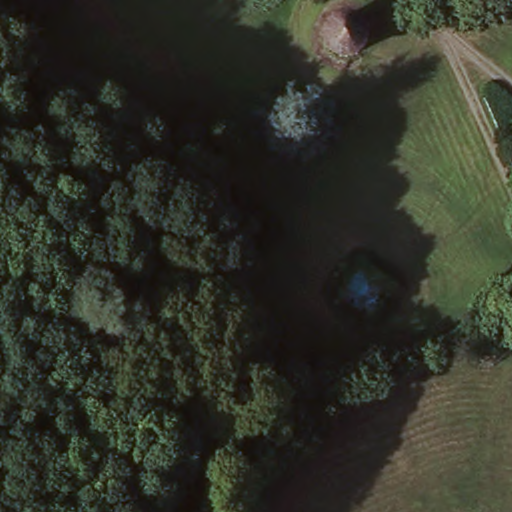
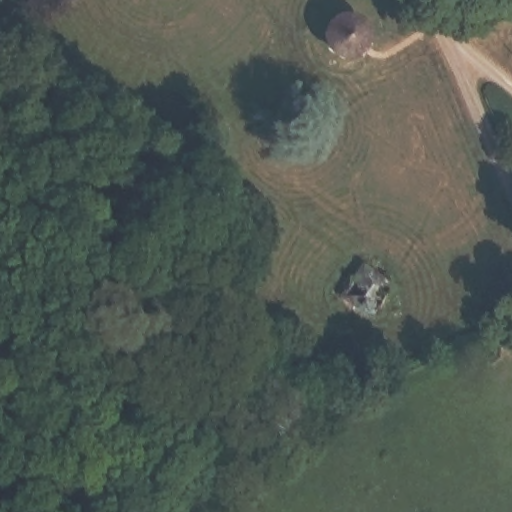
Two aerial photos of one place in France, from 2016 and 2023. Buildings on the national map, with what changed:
unchanged [(363,35),(363,36),(363,37),(363,38),(362,38),(362,39),(362,40),(362,41),(361,41),(361,42),(361,43),(360,43),(360,44),(360,45),(359,45),(359,46),(358,46),(358,47),(357,48),(356,48),(356,49),(355,49),(355,50),(353,51),(352,51),(351,52),(350,52),(349,53),(348,53),(347,53),(346,53),(345,53),(344,54),(342,54),(341,53),(341,54),(340,53),(339,53),(338,53),(337,53),(336,53),(336,52),(335,52),(334,52),(333,51),(332,50),(331,50),(330,50),(330,49),(330,48),(329,48),(328,48),(328,47),(327,47),(327,46),(326,46),(326,45),(326,44),(325,44),(325,43),(325,42),(325,41),(324,41),(324,40),(323,39),(323,38),(323,37),(323,36),(322,35),(322,32),(322,31),(322,30),(323,30),(323,29),(323,28),(323,27),(323,26),(324,26),(324,25),(325,25),(325,24),(325,23),(326,22),(326,21),(327,21),(327,20),(328,20),(328,19),(329,19),(329,18),(330,18),(330,17),(331,17),(332,16),(333,15),(334,15),(335,15),(335,14),(336,14),(337,14),(338,13),(339,13),(340,13),(341,13),(343,13),(344,13),(345,13),(346,13),(347,13),(348,13),(348,14),(349,14),(350,14),(351,14),(351,15),(352,15),(353,15),(355,16),(355,17),(356,18),(357,18),(357,19),(358,19),(358,20),(359,21),(360,21),(360,22),(360,23),(361,24),(361,25),(362,25),(362,26),(362,27),(362,28),(363,28),(363,29),(363,30),(363,31),(363,32),(363,34),(363,35)]
unchanged [(362,269),(398,289),(375,323),(342,301),(362,269)]

